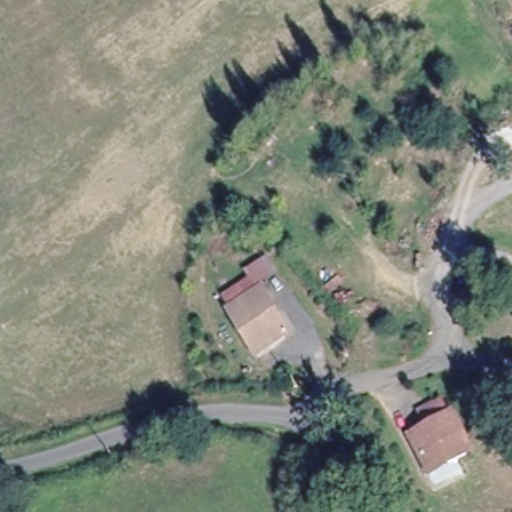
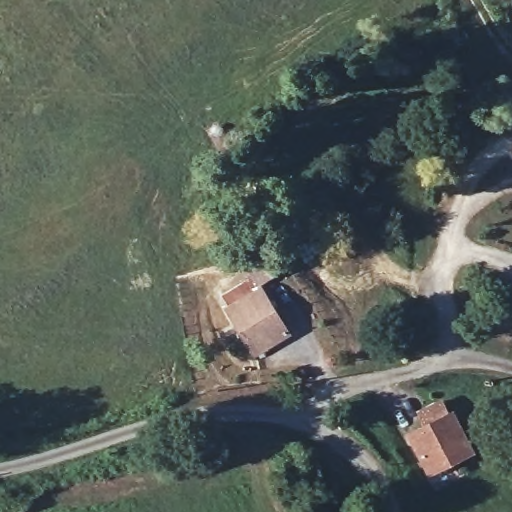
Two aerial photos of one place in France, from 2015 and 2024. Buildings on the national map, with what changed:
unchanged [(258,280),(287,324),(255,346),(225,301),(258,280)]
unchanged [(450,413),(463,448),(425,465),(411,430),(450,413)]

